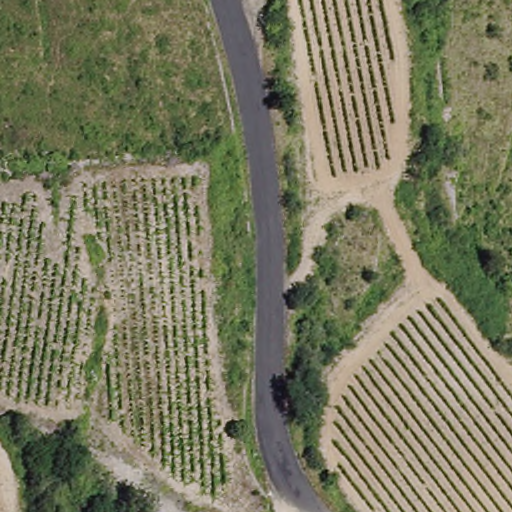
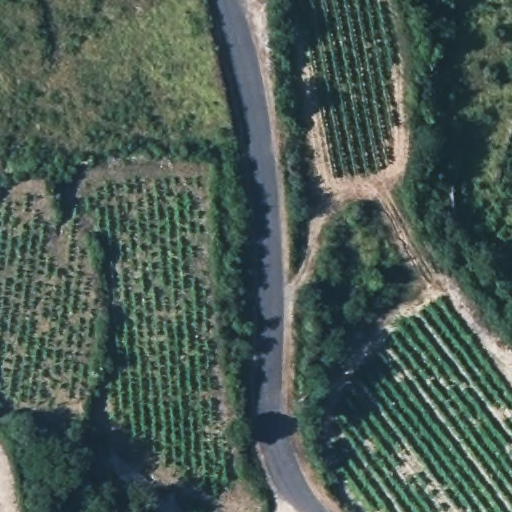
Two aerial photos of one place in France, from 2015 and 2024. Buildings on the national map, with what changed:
[]

